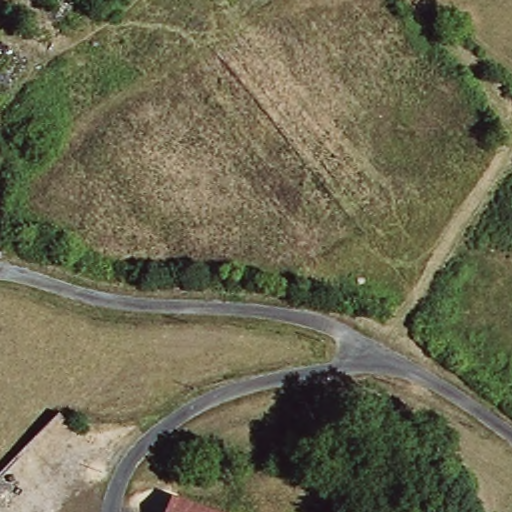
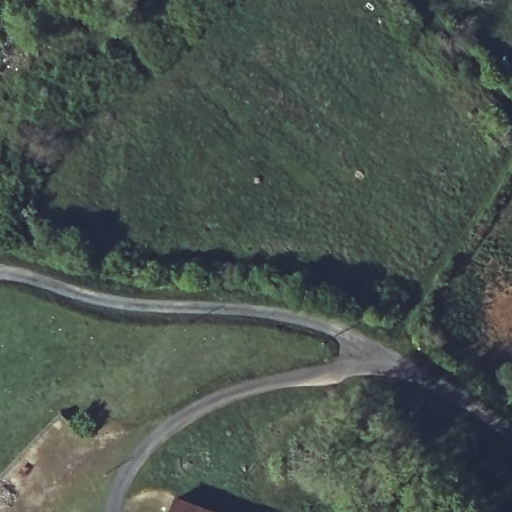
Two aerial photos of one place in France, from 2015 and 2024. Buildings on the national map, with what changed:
unchanged [(225,512),(179,512),(189,492),(225,512)]

